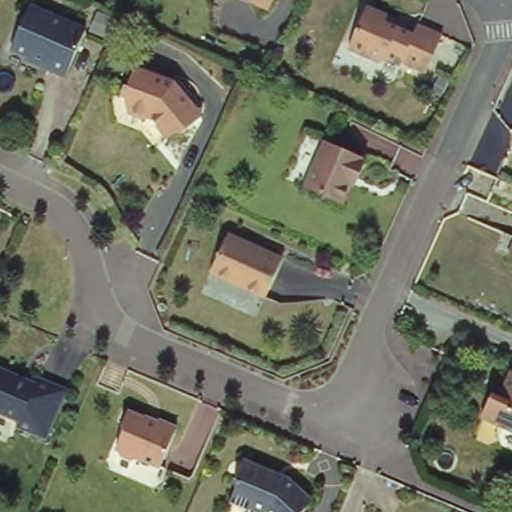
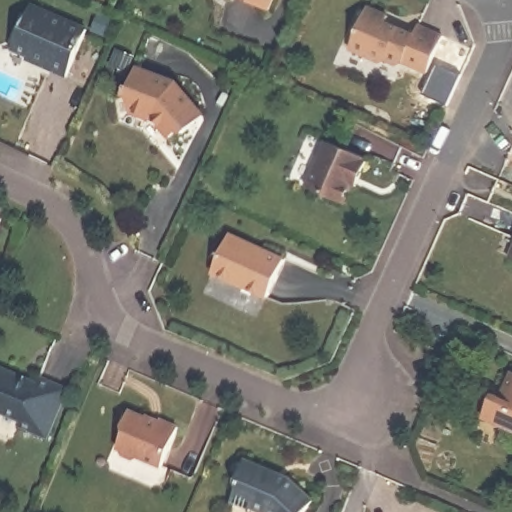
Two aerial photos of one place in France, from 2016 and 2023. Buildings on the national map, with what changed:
unchanged [(275,5),(260,0),(277,0),(275,5)]
unchanged [(391,9),(388,16),(417,29),(421,20),(446,30),(430,67),(406,57),(399,59),(388,54),(382,57),(353,44),(371,0),(391,9)]
unchanged [(87,26),(67,71),(50,64),(51,62),(12,44),(31,1),(87,26)]
unchanged [(175,76),(202,109),(182,125),(169,124),(164,129),(146,107),(140,112),(121,102),(120,88),(117,86),(122,77),(125,78),(132,61),(175,76)]
unchanged [(351,182),(343,201),(306,186),(325,139),(362,155),(361,157),(366,159),(359,176),(356,184),(351,182)]
unchanged [(277,255),(261,291),(206,267),(223,232),(277,255)]
unchanged [(512,259),(506,255),(512,240),(512,259)]
unchanged [(31,377),(32,373),(64,388),(41,435),(11,420),(13,416),(0,410),(0,365),(31,377)]
unchanged [(492,393),(503,397),(512,375),(512,426),(484,413),(492,393)]
unchanged [(156,418),(159,412),(175,421),(156,463),(138,455),(132,457),(120,452),(117,446),(113,444),(122,424),(119,417),(127,405),(156,418)]
unchanged [(309,493),(292,512),(271,512),(265,507),(247,504),(248,499),(231,495),(235,480),(233,471),(242,452),(285,470),(309,493)]

